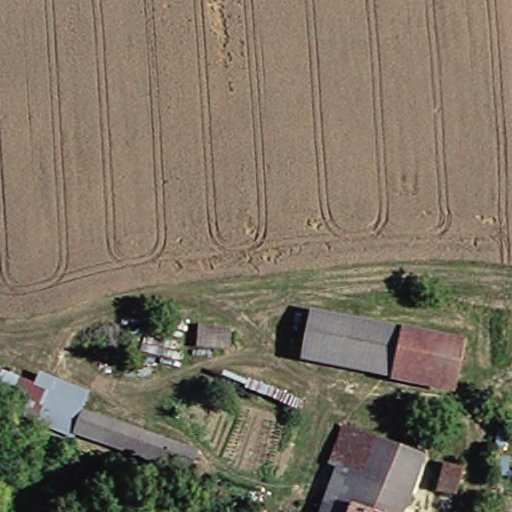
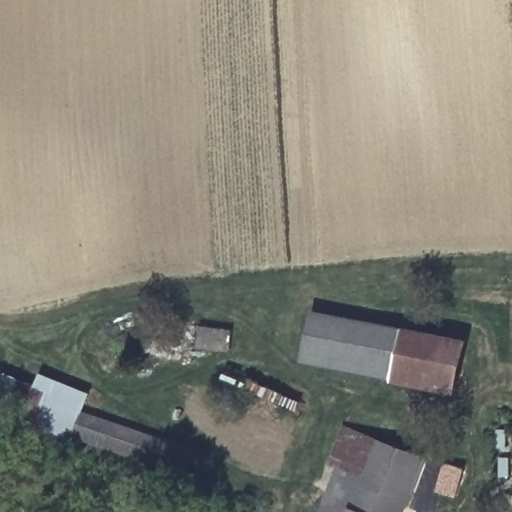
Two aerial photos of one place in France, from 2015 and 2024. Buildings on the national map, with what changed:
unchanged [(301,361),(309,313),(401,330),(463,344),(454,392),(389,378),(301,361)]
unchanged [(197,324),(235,328),(229,355),(195,349),(197,324)]
unchanged [(72,404),(71,409),(64,433),(0,407),(0,381),(3,376),(72,404)]
unchanged [(189,480),(176,474),(64,433),(71,409),(184,446),(180,460),(193,466),(189,480)]
unchanged [(322,450),(328,426),(404,446),(419,449),(411,476),(401,512),(318,512),(335,454),(322,450)]
unchanged [(461,499),(438,496),(444,468),(465,471),(461,499)]

